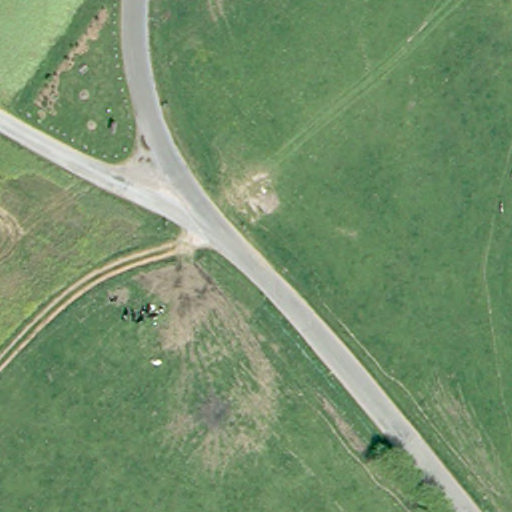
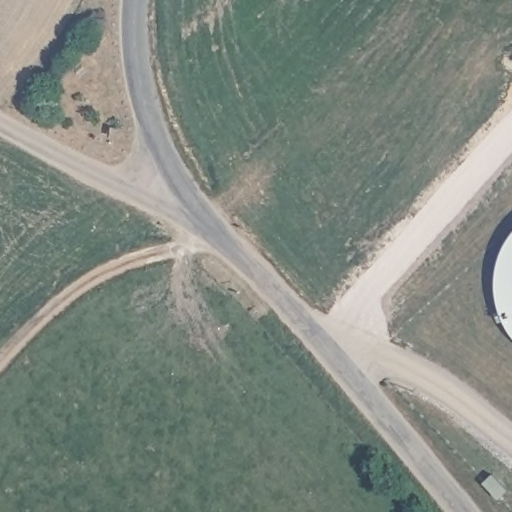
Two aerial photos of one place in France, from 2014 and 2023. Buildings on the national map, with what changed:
new [(511,327),(506,317),(502,308),(499,298),(497,287),(496,277),(497,267),(499,256),(502,246),(507,237),(512,230),(512,328),(511,327)]

